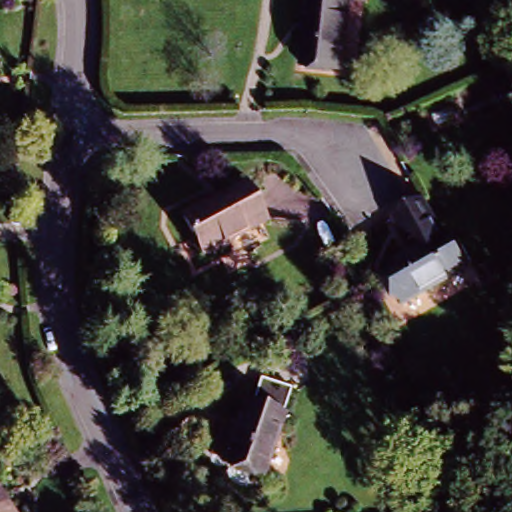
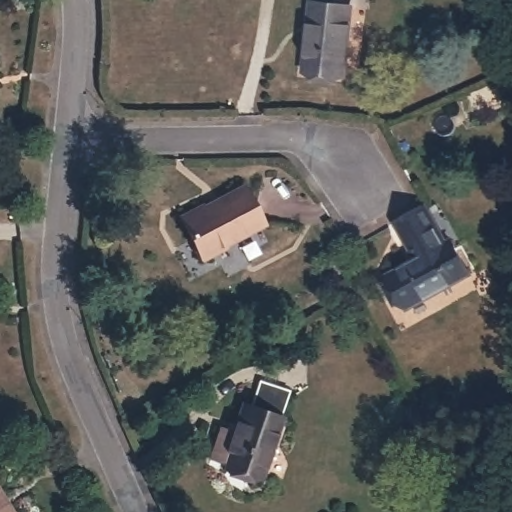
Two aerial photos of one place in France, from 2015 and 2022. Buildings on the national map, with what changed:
unchanged [(304,70),(312,3),(351,7),(344,75),(304,70)]
unchanged [(199,209),(239,188),(259,224),(218,245),(219,248),(198,259),(176,219),(198,208),(199,209)]
unchanged [(424,212),(445,248),(450,245),(469,278),(405,314),(387,281),(416,264),(396,228),(424,212)]
unchanged [(256,478),(219,464),(240,404),(277,417),(256,478)]
unchanged [(0,509),(2,512),(0,512),(0,509)]

